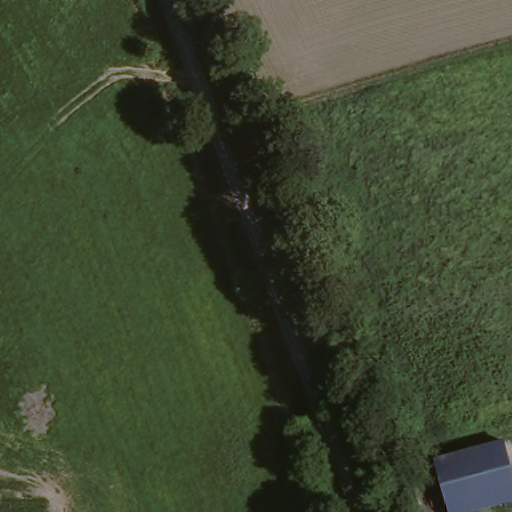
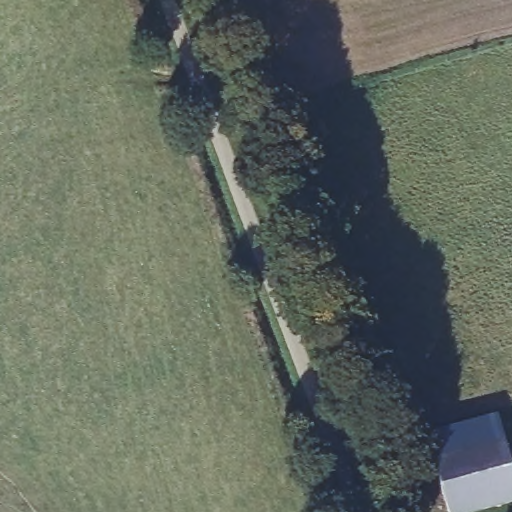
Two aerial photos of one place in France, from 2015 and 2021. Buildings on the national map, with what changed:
unchanged [(512,480),(512,503),(474,512),(444,512),(433,469),(505,451),(512,480)]

